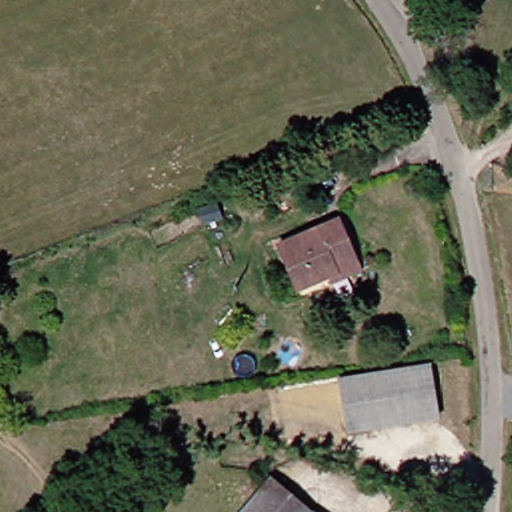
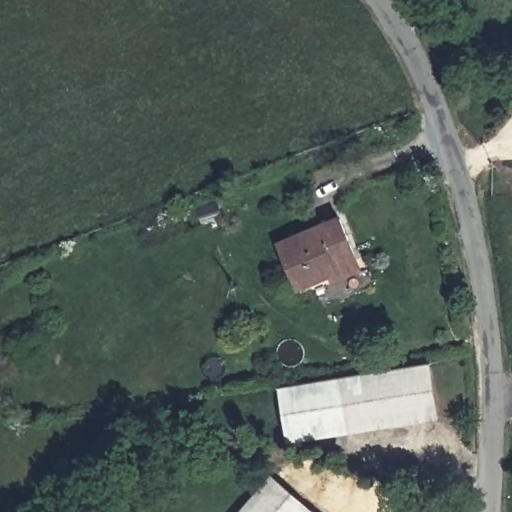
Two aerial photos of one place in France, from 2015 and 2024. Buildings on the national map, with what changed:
unchanged [(338,292),(332,276),(301,289),(280,239),(340,212),(360,261),(366,278),(338,292)]
unchanged [(399,371),(428,366),(437,421),(347,435),(338,380),(399,371)]
new [(288,443),(278,388),(338,380),(347,435),(288,443)]
unchanged [(247,512),(275,480),(313,512),(247,512)]

